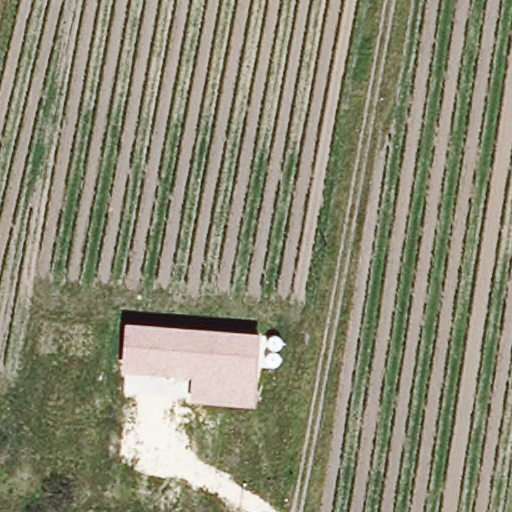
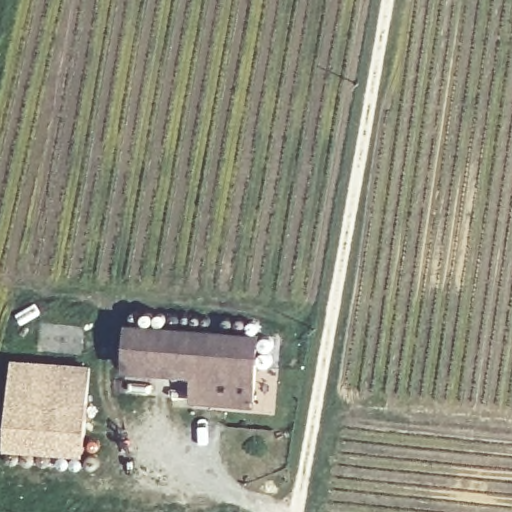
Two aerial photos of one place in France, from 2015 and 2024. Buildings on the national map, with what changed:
unchanged [(261,332),(255,406),(191,400),(192,377),(122,372),(127,323),(261,332)]
new [(13,359),(93,365),(87,456),(6,450),(13,359)]

